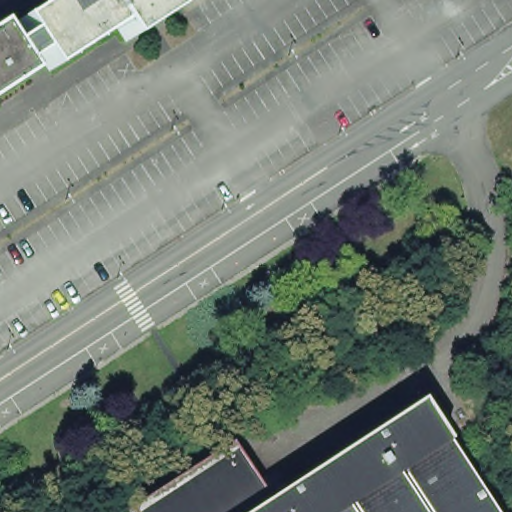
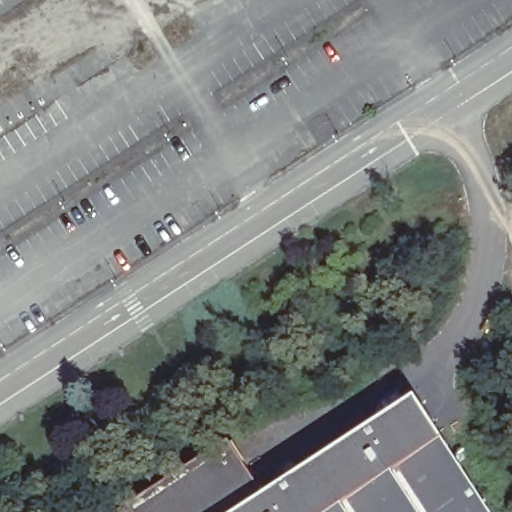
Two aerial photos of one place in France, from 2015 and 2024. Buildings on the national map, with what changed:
demolished [(45,53),(31,31),(22,18),(50,0),(160,0),(121,26),(55,69),(45,53)]
demolished [(173,0),(181,11),(133,41),(121,26),(160,0),(173,0)]
demolished [(25,67),(32,79),(0,98),(0,26),(11,44),(25,67)]
unchanged [(418,426),(474,512),(282,512),(418,426)]
unchanged [(263,512),(168,512),(235,469),(263,512)]

